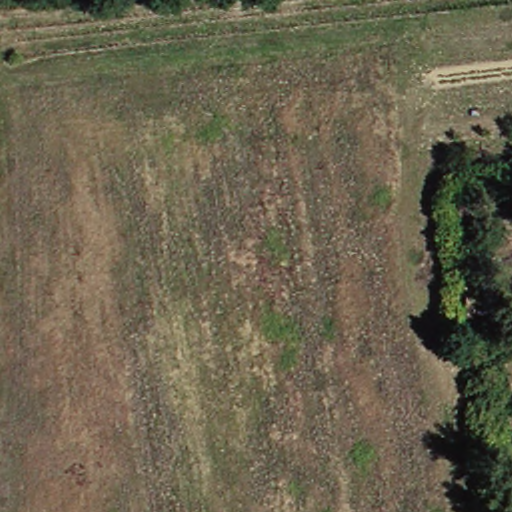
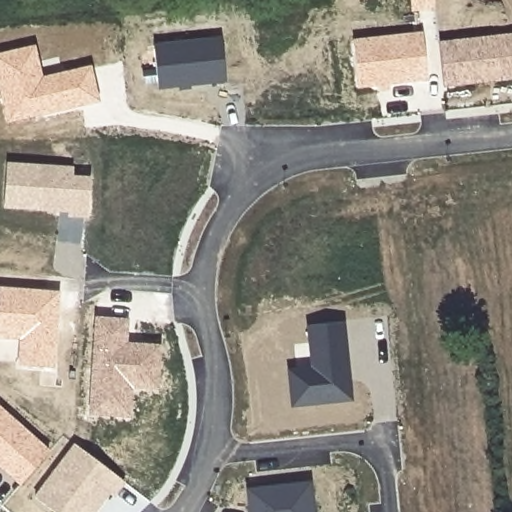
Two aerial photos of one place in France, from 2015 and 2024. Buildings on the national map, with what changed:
new [(410,0),(434,0),(435,8),(411,11),(410,0)]
new [(352,39),(421,31),(427,80),(359,87),(352,39)]
new [(512,33),(512,80),(443,87),(438,41),(512,33)]
new [(153,43),(220,36),(225,82),(158,90),(153,43)]
new [(0,93),(0,53),(35,45),(41,76),(91,65),(100,102),(6,123),(0,93)]
new [(6,162),(73,167),(72,175),(90,176),(87,219),(67,217),(67,212),(4,208),(6,162)]
new [(19,340),(0,339),(0,287),(60,290),(55,368),(18,365),(19,340)]
new [(95,316),(128,318),(127,342),(160,344),(158,390),(132,389),(131,417),(88,415),(95,316)]
new [(287,368),(310,366),(305,325),(343,321),(352,401),(290,407),(287,368)]
new [(0,468),(0,406),(50,450),(19,485),(0,468)]
new [(73,443),(124,483),(114,497),(109,493),(95,512),(54,512),(34,496),(73,443)]
new [(310,480),(315,512),(249,512),(246,487),(310,480)]

